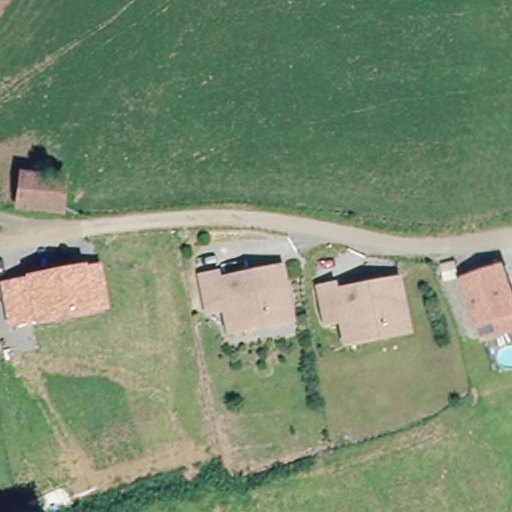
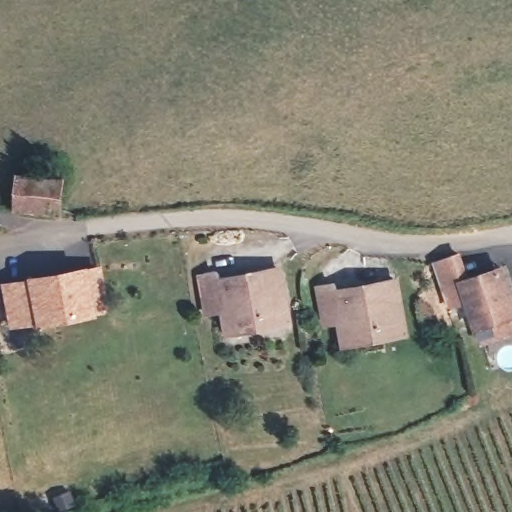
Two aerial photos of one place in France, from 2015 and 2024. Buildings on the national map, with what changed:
unchanged [(24,180),(65,181),(64,215),(23,214),(24,180)]
unchanged [(109,309),(8,327),(0,290),(0,283),(100,264),(109,309)]
unchanged [(457,279),(443,282),(441,269),(454,266),(457,279)]
unchanged [(480,341),(476,328),(462,284),(499,271),(512,311),(512,331),(480,341)]
unchanged [(227,327),(224,315),(213,317),(207,282),(224,278),(225,285),(284,274),(294,324),(266,330),(228,337),(227,327)]
unchanged [(337,338),(335,325),(324,327),(318,292),(335,289),(336,296),(396,285),(404,335),(377,340),(339,348),(337,338)]

